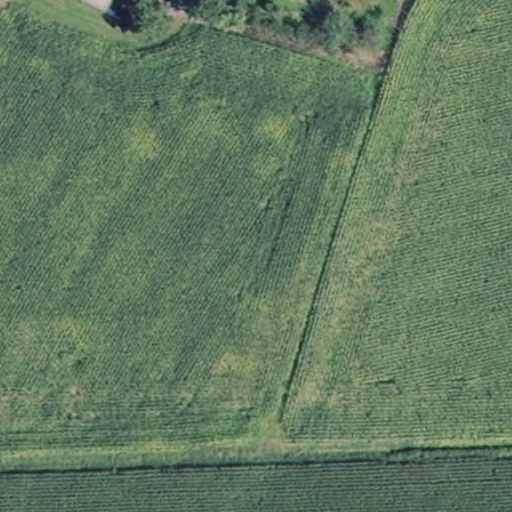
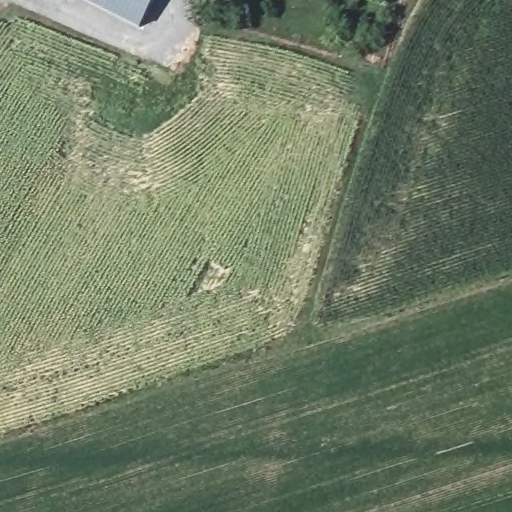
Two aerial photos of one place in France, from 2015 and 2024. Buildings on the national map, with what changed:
demolished [(116,0),(109,15),(78,0),(116,0)]
new [(82,0),(155,0),(141,29),(82,0)]
new [(93,0),(116,0),(112,9),(93,0)]

